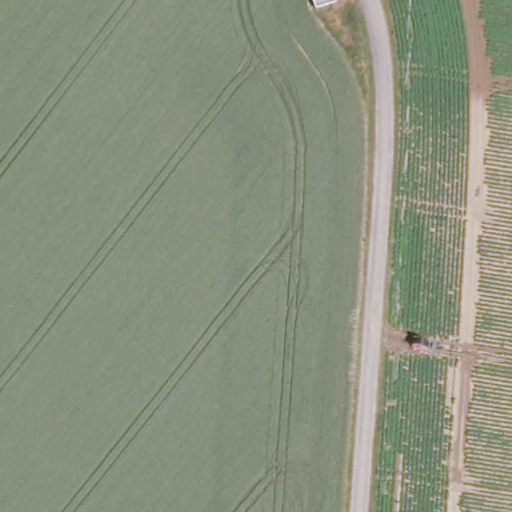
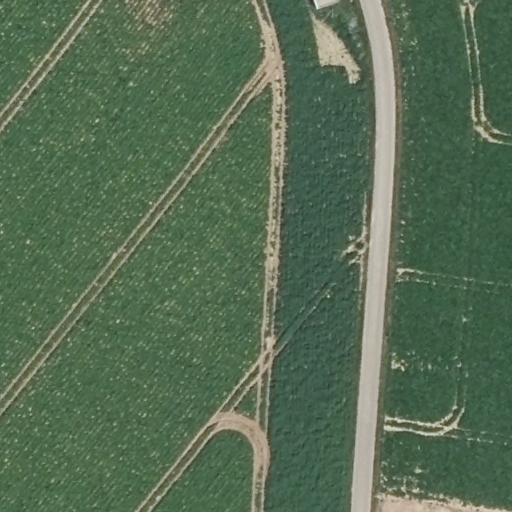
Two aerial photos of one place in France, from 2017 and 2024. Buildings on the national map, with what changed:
unchanged [(314,15),(309,0),(339,0),(341,6),(314,15)]

